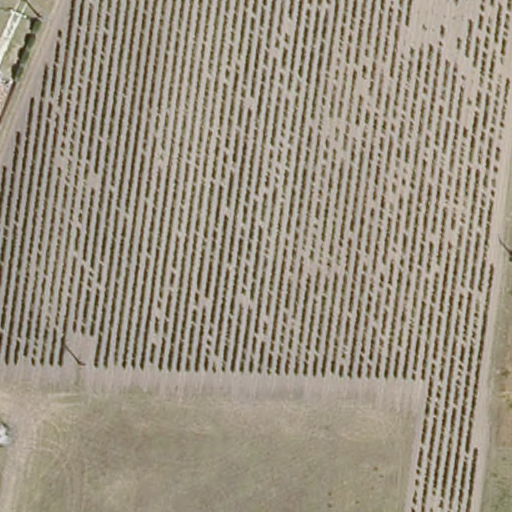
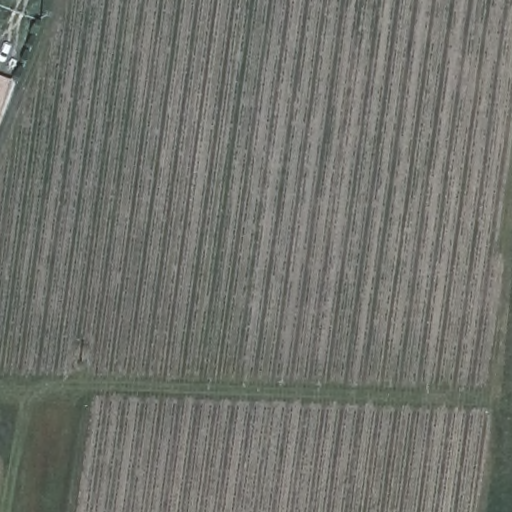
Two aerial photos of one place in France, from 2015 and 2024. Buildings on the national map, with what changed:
unchanged [(6,80),(1,99),(0,104),(0,78),(6,80)]

